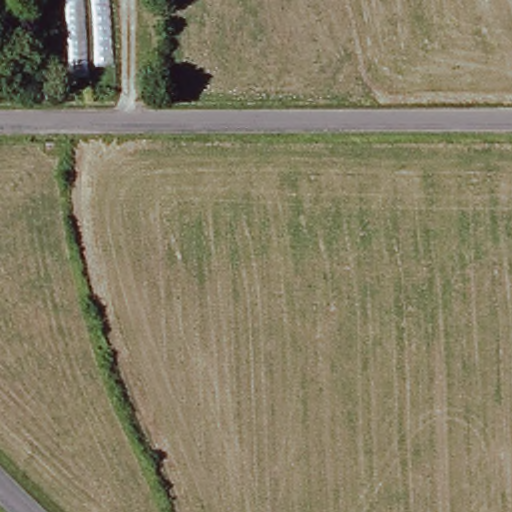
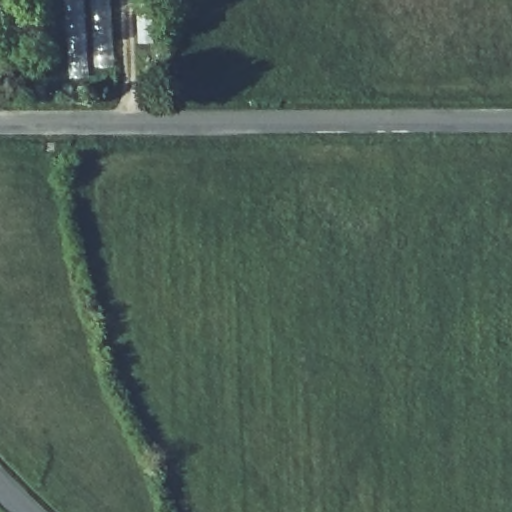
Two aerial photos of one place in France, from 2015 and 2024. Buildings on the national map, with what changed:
unchanged [(63,0),(109,0),(112,72),(69,75),(63,0)]

